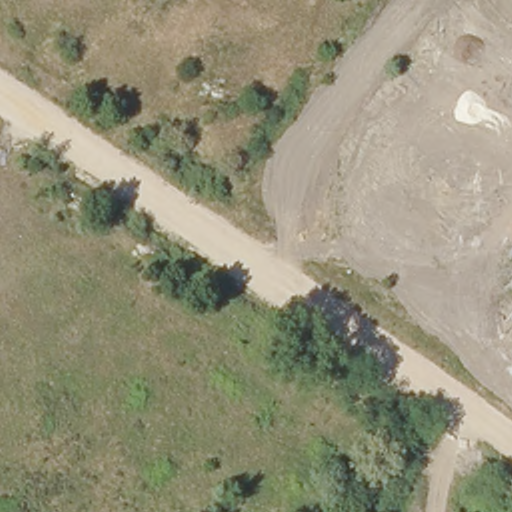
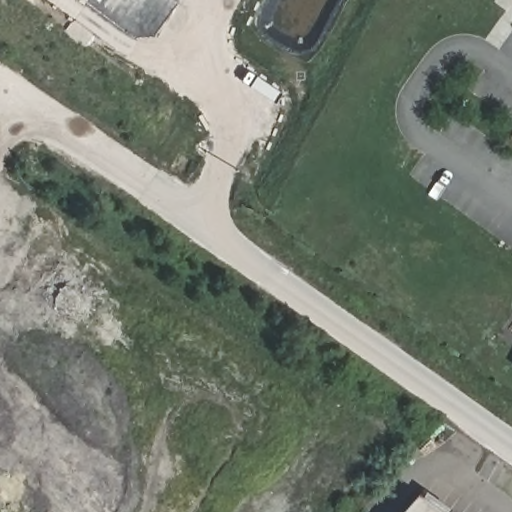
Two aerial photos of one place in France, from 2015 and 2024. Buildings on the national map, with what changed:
new [(420,495),(427,499),(431,495),(452,511),(451,512),(404,512),(420,495)]

